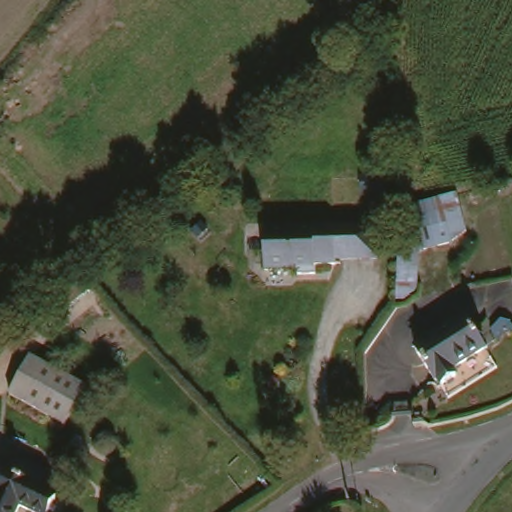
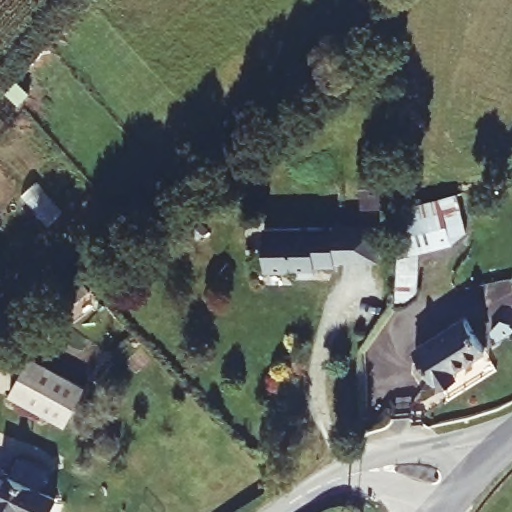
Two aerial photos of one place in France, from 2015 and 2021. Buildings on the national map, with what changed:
unchanged [(364,178),(386,177),(387,197),(365,197),(364,178)]
unchanged [(396,301),(397,257),(400,212),(400,207),(405,206),(456,195),(466,234),(450,237),(451,244),(407,255),(406,301),(396,301)]
unchanged [(339,227),(340,265),(320,266),(320,275),(302,275),(302,270),(270,271),(269,229),(339,227)]
unchanged [(491,350),(458,370),(462,377),(446,387),(442,381),(441,382),(420,350),(470,318),(491,350)]
unchanged [(86,387),(65,426),(11,397),(32,358),(86,387)]
unchanged [(34,512),(26,507),(23,512),(0,512),(0,505),(0,473),(12,478),(14,476),(23,457),(54,472),(45,490),(62,498),(55,512),(34,512)]

